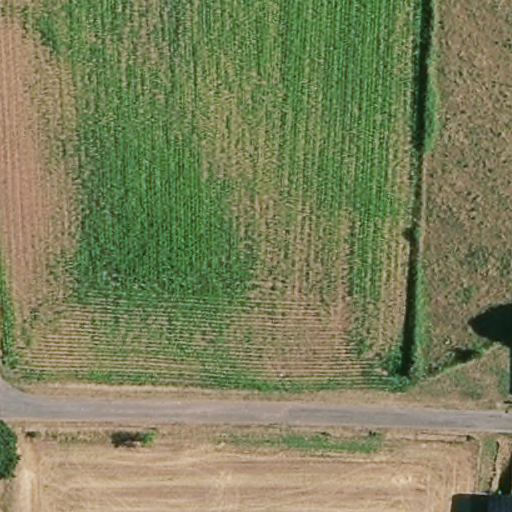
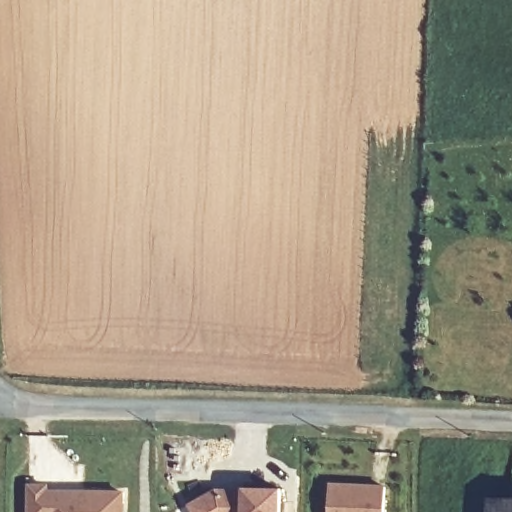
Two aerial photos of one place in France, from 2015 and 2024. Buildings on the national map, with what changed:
new [(29,512),(30,485),(47,485),(47,492),(123,493),(123,512),(29,512)]
new [(385,486),(383,512),(327,512),(328,485),(385,486)]
new [(245,488),(281,489),(281,512),(189,512),(185,505),(215,489),(245,488)]
unchanged [(512,500),(512,512),(480,512),(480,500),(512,500)]

